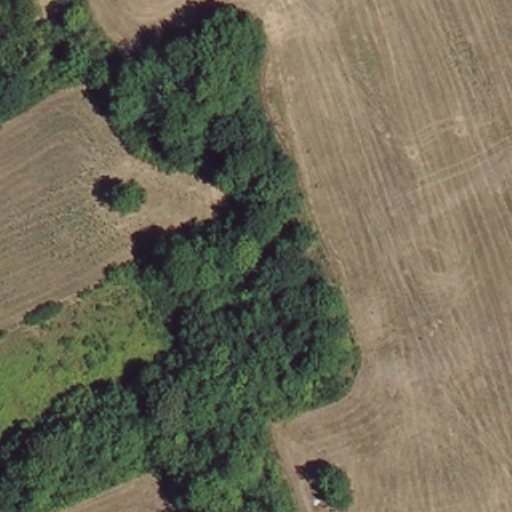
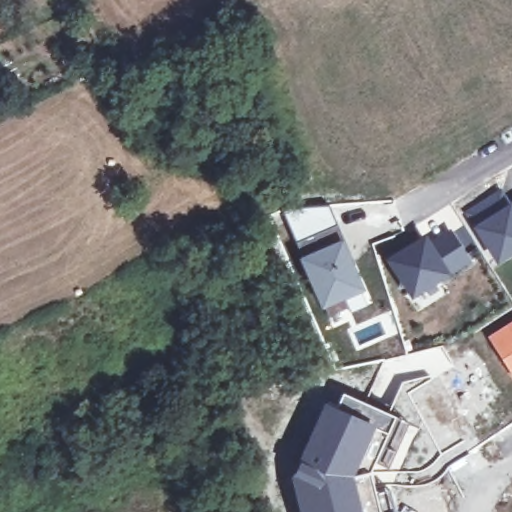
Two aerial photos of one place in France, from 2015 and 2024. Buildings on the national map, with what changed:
new [(472,224),(464,211),(501,188),(510,201),(512,200),(512,250),(496,260),(472,224)]
new [(329,203),(338,227),(323,232),(295,241),(283,210),(329,203)]
new [(451,227),(473,262),(451,275),(449,272),(409,296),(385,257),(428,232),(432,238),(451,227)]
new [(323,232),(326,238),(324,239),(325,242),(342,236),(370,303),(350,312),(345,300),(322,310),(302,264),(295,241),(323,232)]
new [(486,336),(512,319),(512,378),(486,336)]
new [(342,391),(401,417),(393,434),(336,405),(342,391)]
new [(324,400),(336,405),(393,434),(374,471),(373,471),(382,512),(299,512),(290,475),(291,475),(324,400)]

